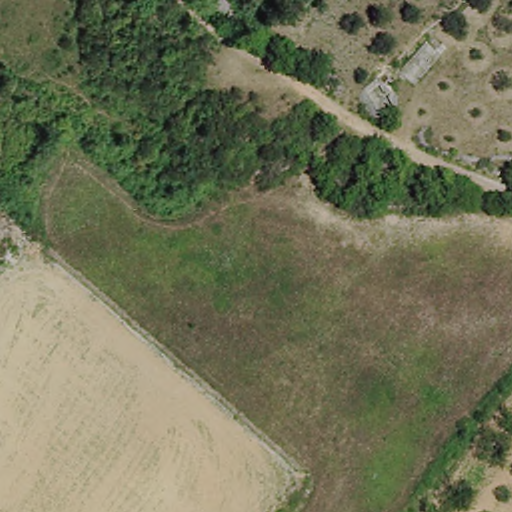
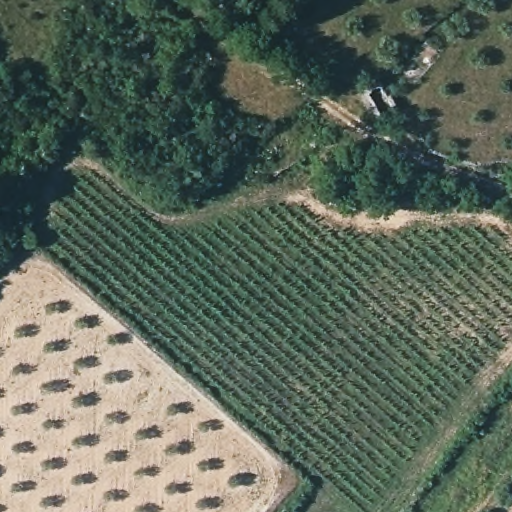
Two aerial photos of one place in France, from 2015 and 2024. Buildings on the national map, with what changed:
unchanged [(372,79),(393,104),(380,115),(359,93),(372,79)]

